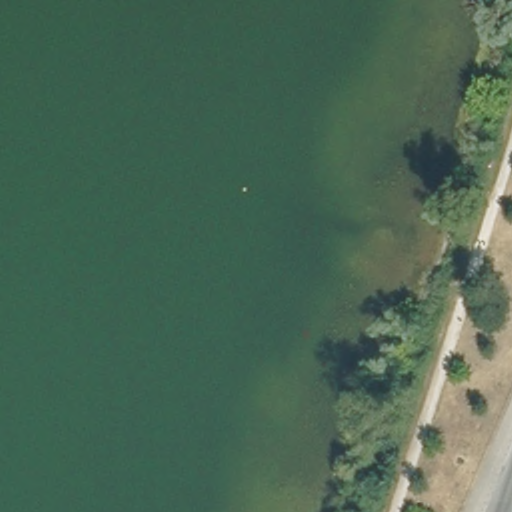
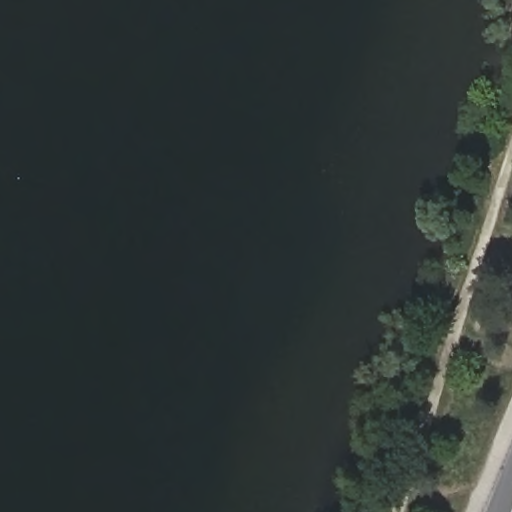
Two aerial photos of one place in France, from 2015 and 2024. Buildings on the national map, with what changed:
[]

